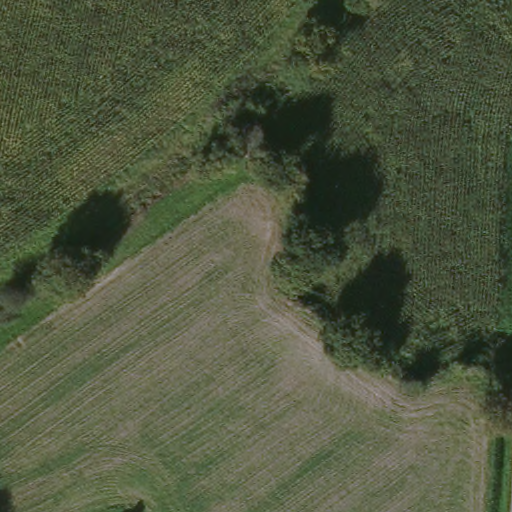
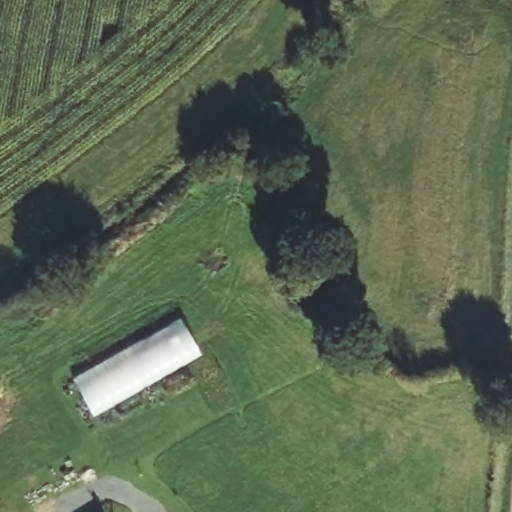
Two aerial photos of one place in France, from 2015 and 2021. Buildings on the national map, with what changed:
new [(202,353),(93,416),(72,379),(182,317),(202,353)]

